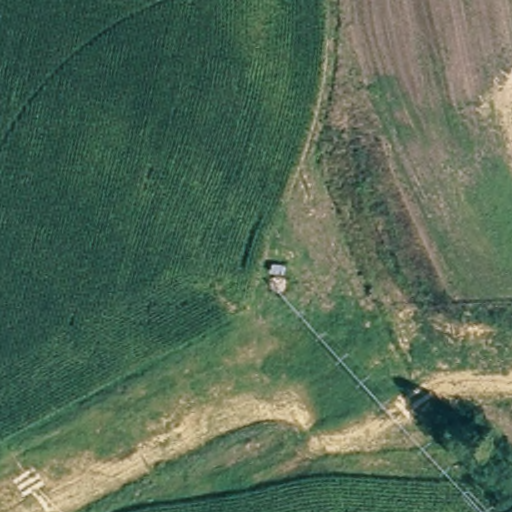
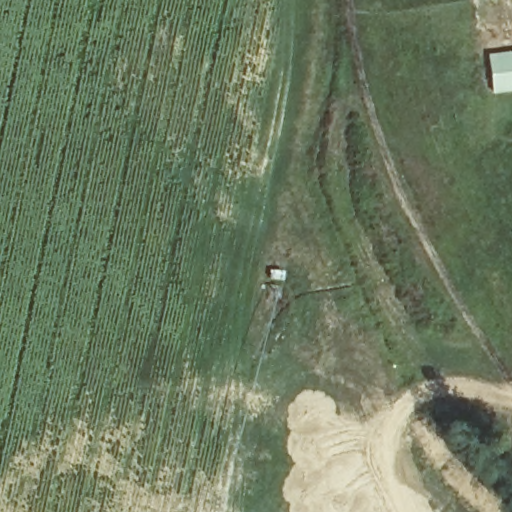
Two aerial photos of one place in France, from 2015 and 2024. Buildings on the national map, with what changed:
new [(512,50),(512,91),(492,93),(487,52),(512,50)]

